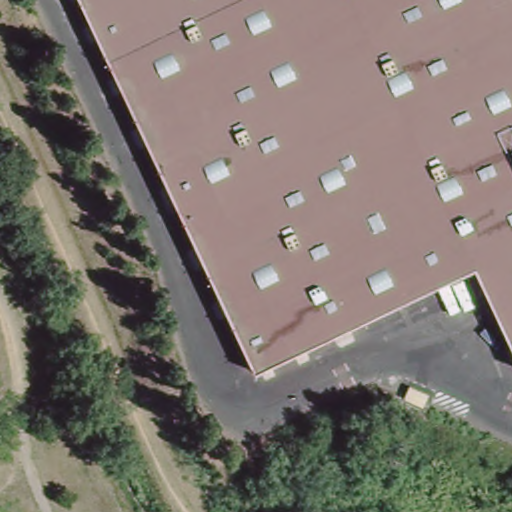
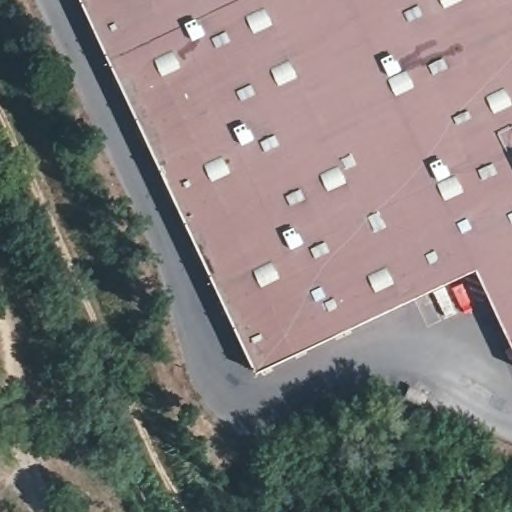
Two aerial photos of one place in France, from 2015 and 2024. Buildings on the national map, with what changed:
unchanged [(512,0),(512,360),(467,269),(335,332),(253,369),(79,0),(512,0)]

